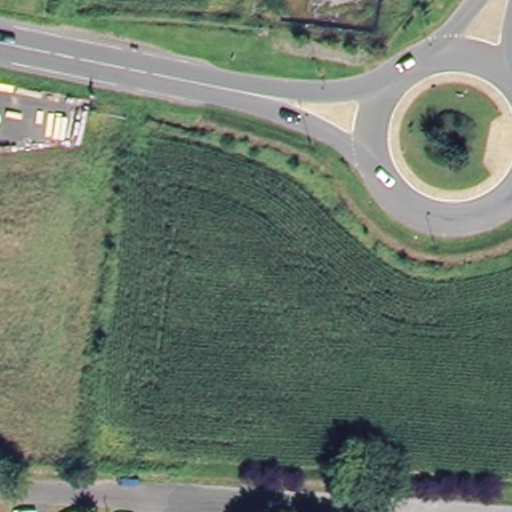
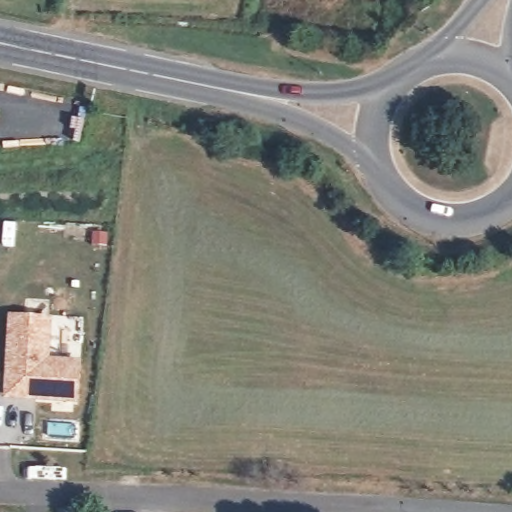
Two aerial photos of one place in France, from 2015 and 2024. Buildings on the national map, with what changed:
new [(3,399),(7,313),(52,316),(50,357),(81,359),(78,403),(3,399)]

